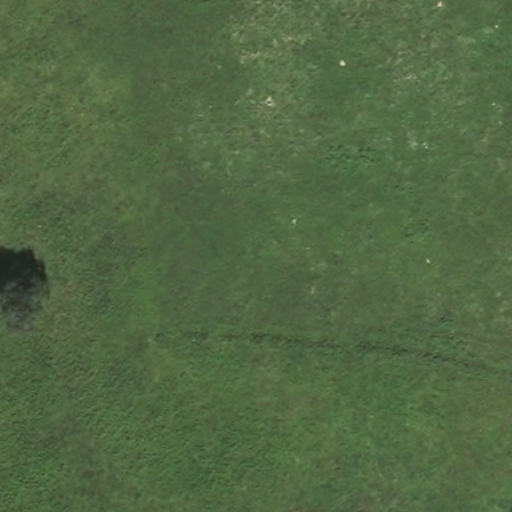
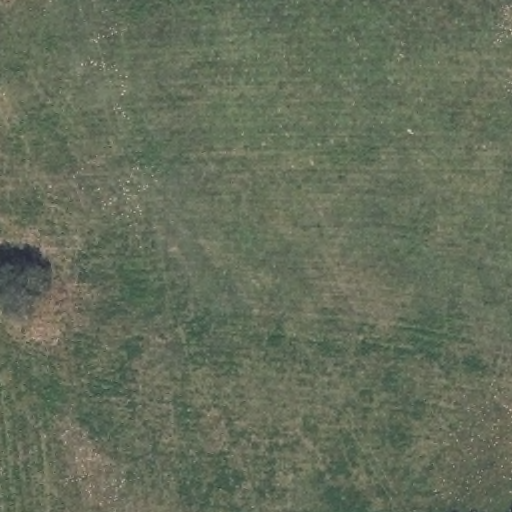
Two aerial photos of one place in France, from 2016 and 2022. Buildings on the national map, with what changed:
[]

